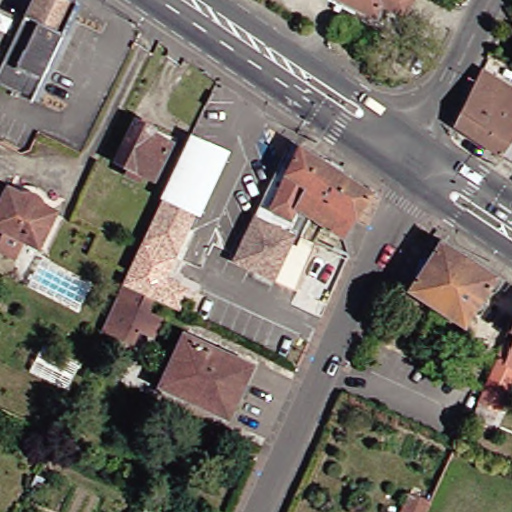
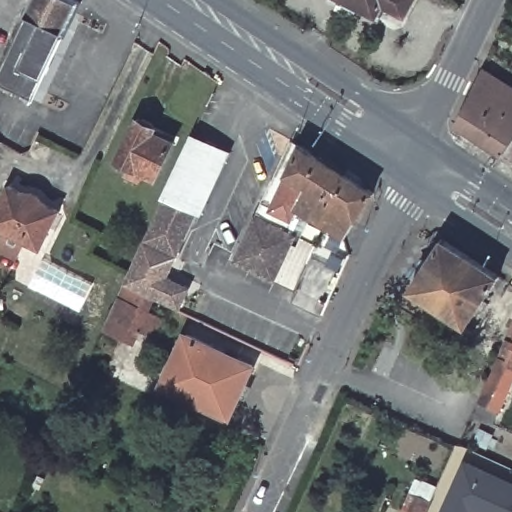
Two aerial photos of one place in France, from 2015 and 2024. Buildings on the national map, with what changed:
unchanged [(22,12),(24,13),(29,0),(78,0),(65,29),(82,37),(48,110),(0,87),(0,59),(22,12)]
unchanged [(403,17),(381,5),(375,16),(366,11),(362,18),(355,14),(354,16),(326,1),(326,0),(412,0),(403,17)]
unchanged [(495,157),(449,125),(477,67),(512,90),(512,130),(497,153),(495,157)]
unchanged [(126,174),(130,167),(117,161),(138,120),(156,129),(154,133),(174,143),(156,180),(145,174),(142,181),(126,174)]
unchanged [(512,130),(512,163),(497,153),(512,130)]
unchanged [(275,281),(235,261),(293,140),(373,194),(345,238),(312,216),(302,238),(297,236),(275,281)]
unchanged [(225,160),(199,216),(196,215),(176,258),(143,243),(163,199),(161,198),(187,141),(225,160)]
unchanged [(32,192),(37,193),(41,197),(46,204),(60,211),(42,251),(0,230),(0,202),(8,186),(22,192),(32,192)]
unchanged [(512,314),(496,348),(463,325),(462,327),(405,290),(438,240),(496,277),(512,287),(512,314)]
unchanged [(176,258),(170,276),(198,291),(188,314),(148,298),(124,287),(143,243),(176,258)]
unchanged [(151,339),(134,332),(129,342),(99,329),(119,285),(148,298),(143,311),(160,318),(151,339)]
unchanged [(512,334),(505,331),(512,316),(512,334)]
unchanged [(474,402),(505,331),(512,334),(512,373),(495,412),(494,411),(488,426),(468,418),(474,402)]
unchanged [(247,371),(224,421),(158,390),(182,340),(247,371)]
unchanged [(43,459),(38,469),(27,464),(32,454),(43,459)]
new [(470,512),(443,512),(466,463),(512,484),(512,512),(475,512),(471,510),(470,512)]
unchanged [(45,479),(40,491),(32,487),(38,476),(45,479)]
unchanged [(429,508),(426,512),(399,512),(406,498),(429,508)]

